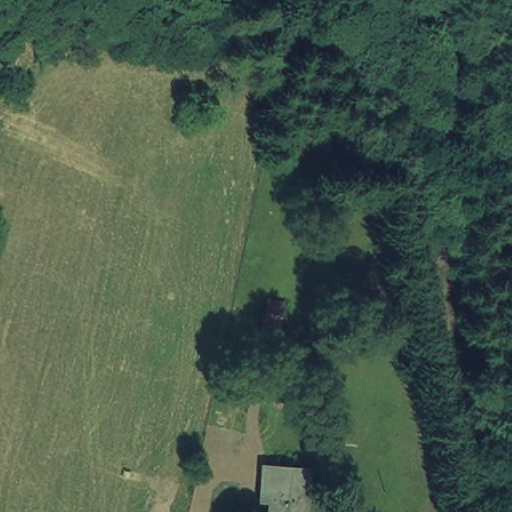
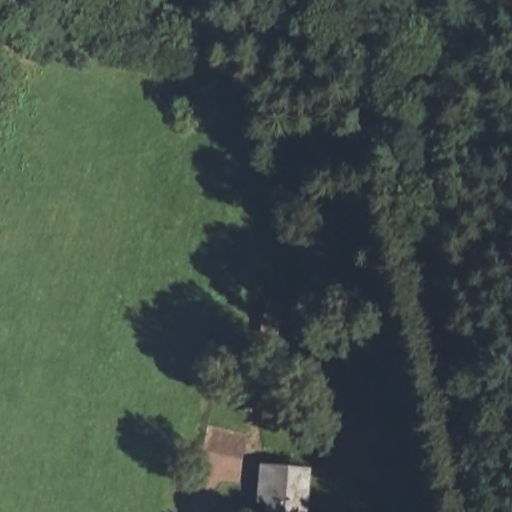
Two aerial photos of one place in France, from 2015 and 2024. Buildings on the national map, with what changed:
unchanged [(266,497),(270,464),(318,470),(313,512),(275,512),(276,498),(266,497)]

